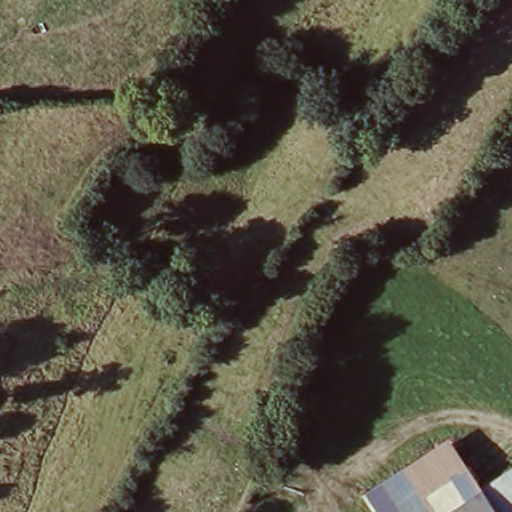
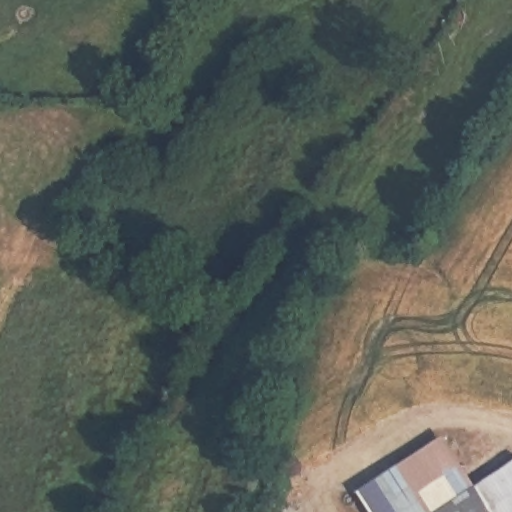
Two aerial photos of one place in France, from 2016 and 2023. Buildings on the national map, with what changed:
unchanged [(483,480),(512,460),(512,512),(377,512),(361,487),(448,429),(483,480)]

